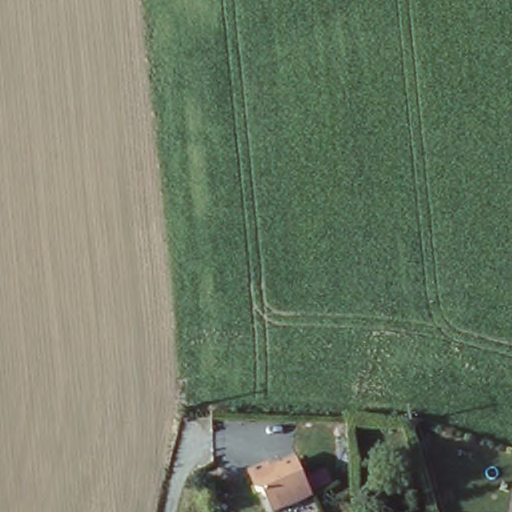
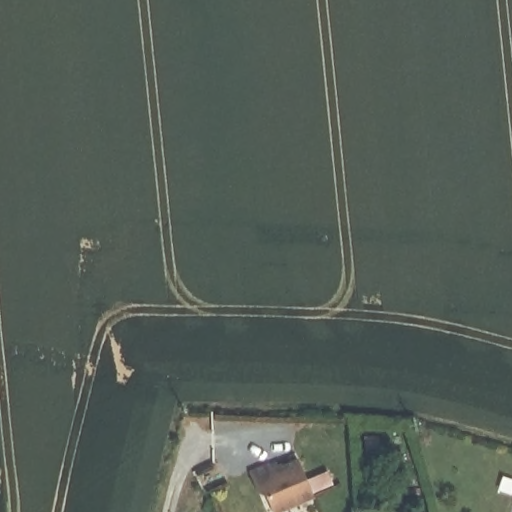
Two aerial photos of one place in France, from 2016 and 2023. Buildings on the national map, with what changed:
unchanged [(266,468),(269,474),(294,463),(310,498),(280,512),(270,512),(264,498),(256,494),(249,476),(266,468)]

